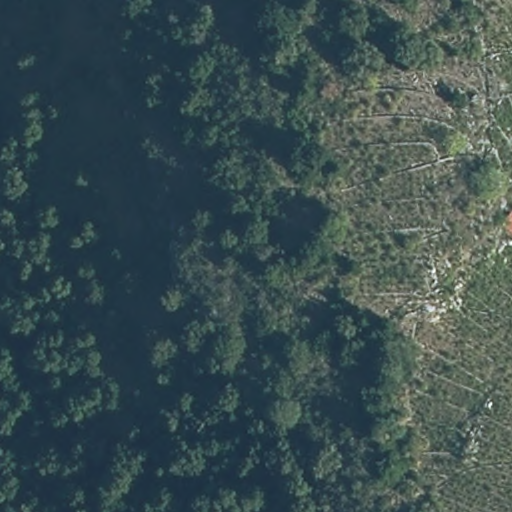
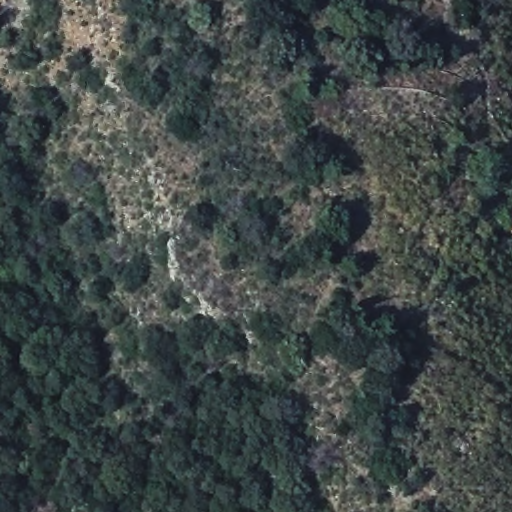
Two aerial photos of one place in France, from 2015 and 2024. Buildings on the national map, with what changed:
unchanged [(503,231),(503,211),(512,211),(512,231),(503,231)]

